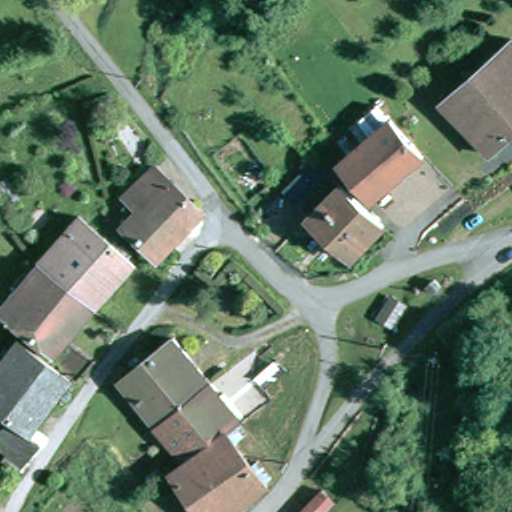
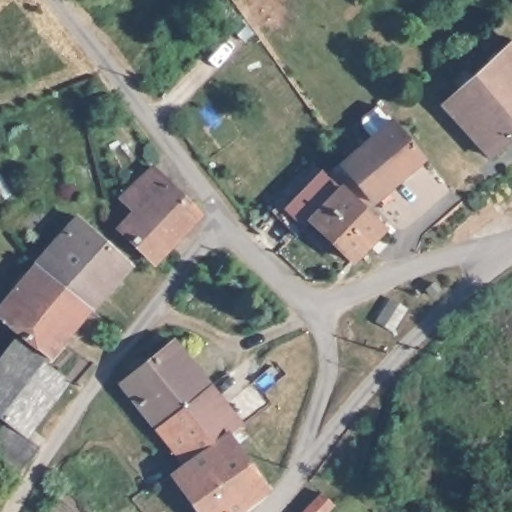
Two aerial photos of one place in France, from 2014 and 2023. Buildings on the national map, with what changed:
unchanged [(492,153),(443,99),(512,43),(512,136),(492,153)]
unchanged [(344,165),(351,159),(364,148),(352,133),(359,127),(379,110),(392,126),(393,125),(424,161),(376,202),(344,165)]
unchanged [(131,213),(134,199),(157,175),(204,218),(161,265),(127,234),(138,221),(131,213)]
unchanged [(308,215),(340,182),(391,234),(360,267),(308,215)]
unchanged [(45,263),(85,219),(133,262),(96,307),(45,263)]
unchanged [(96,307),(56,353),(4,308),(45,263),(96,307)]
unchanged [(157,419),(123,373),(173,333),(209,381),(157,419)]
unchanged [(0,412),(0,356),(15,336),(16,336),(69,377),(32,429),(29,433),(0,412)]
unchanged [(209,381),(238,420),(224,429),(186,457),(157,419),(209,381)]
unchanged [(32,429),(43,438),(28,457),(0,436),(0,412),(29,433),(32,429)]
unchanged [(224,429),(261,479),(258,482),(260,486),(227,512),(202,512),(171,468),(186,457),(224,429)]
unchanged [(320,489),(333,502),(324,512),(298,512),(320,489)]

